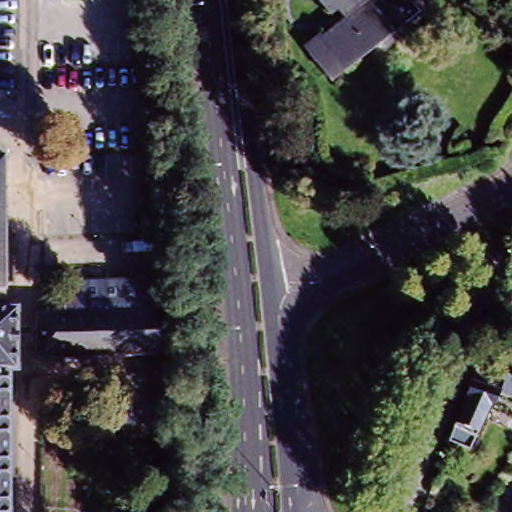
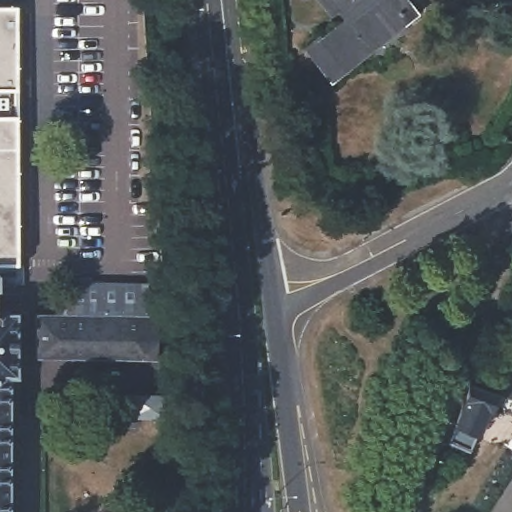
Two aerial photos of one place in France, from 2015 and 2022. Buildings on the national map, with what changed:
unchanged [(422,9),(330,85),(305,54),(317,45),(317,46),(345,23),(336,11),(326,20),(309,0),(414,0),(422,9)]
new [(16,5),(15,261),(0,261),(0,5),(16,5)]
demolished [(3,152),(4,291),(0,291),(0,152),(3,152)]
unchanged [(156,288),(155,360),(34,358),(35,314),(54,315),(54,306),(65,307),(65,286),(156,288)]
unchanged [(15,318),(15,379),(7,379),(6,512),(0,512),(0,318),(15,318)]
unchanged [(490,391),(473,434),(453,426),(469,383),(490,391)]
unchanged [(127,418),(128,428),(107,428),(107,418),(127,418)]
unchanged [(512,424),(512,433),(507,431),(512,424)]

